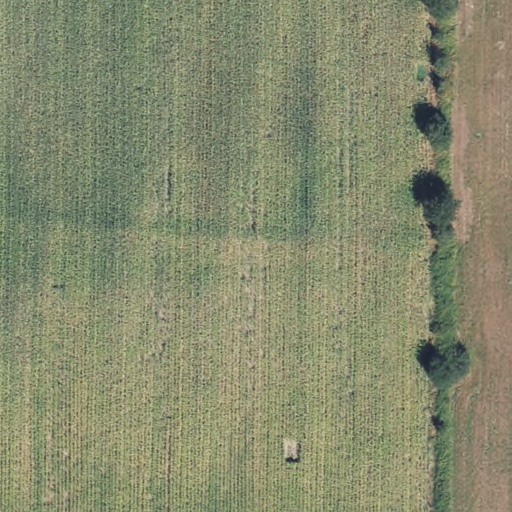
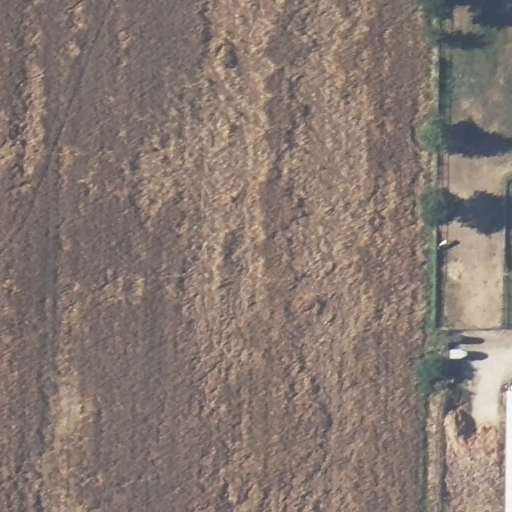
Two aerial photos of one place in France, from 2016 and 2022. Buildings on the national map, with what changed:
new [(512,391),(512,512),(506,512),(507,390),(512,391)]

